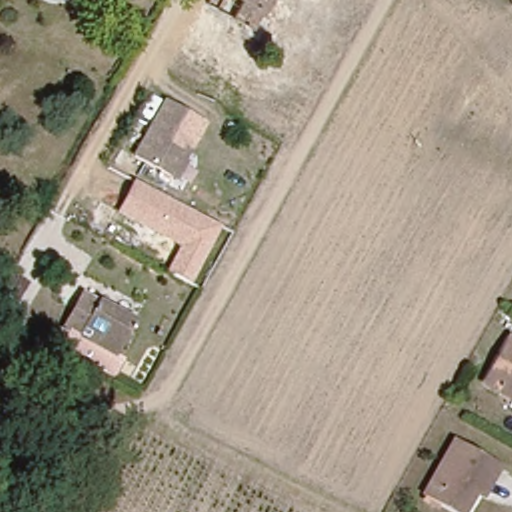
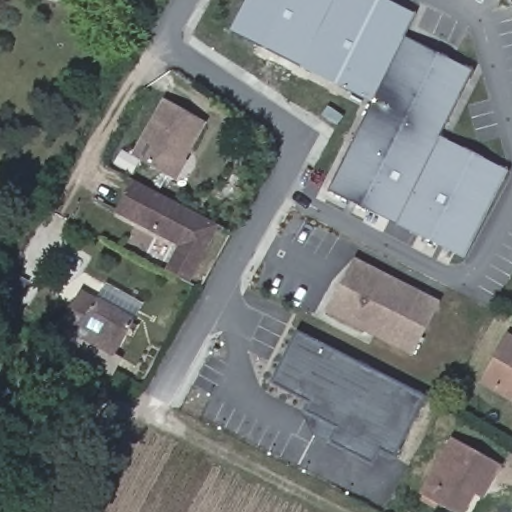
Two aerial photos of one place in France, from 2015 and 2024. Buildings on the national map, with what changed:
demolished [(247,27),(201,2),(202,0),(262,0),(247,27)]
new [(436,140),(506,171),(462,258),(322,192),(367,105),(222,34),(239,0),(378,0),(413,19),(404,38),(475,70),(436,140)]
unchanged [(205,123),(189,153),(183,149),(167,175),(134,157),(166,101),(205,123)]
unchanged [(190,284),(164,270),(177,247),(116,214),(134,181),(219,227),(190,284)]
demolished [(113,213),(101,235),(99,238),(86,231),(88,228),(99,206),(113,213)]
new [(415,355),(333,314),(359,260),(440,302),(415,355)]
unchanged [(56,338),(65,322),(72,326),(93,289),(129,308),(109,345),(117,349),(109,365),(56,338)]
new [(304,411),(309,402),(271,382),(298,330),(427,396),(396,457),(381,449),(374,464),(328,441),(315,434),(304,411)]
unchanged [(480,377),(508,331),(512,333),(512,395),(496,385),(480,377)]
unchanged [(461,512),(454,512),(421,494),(454,436),(499,460),(491,475),(481,493),(475,489),(461,512)]

